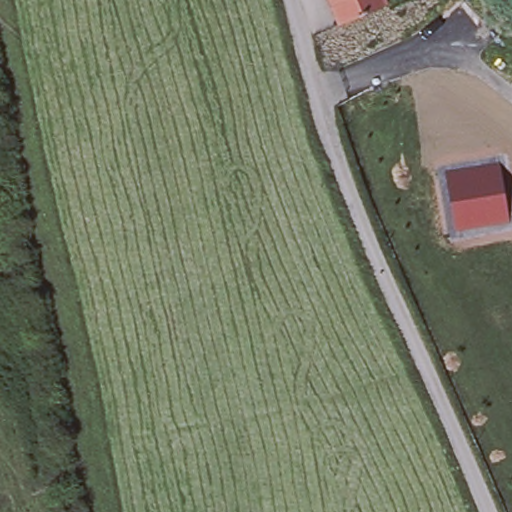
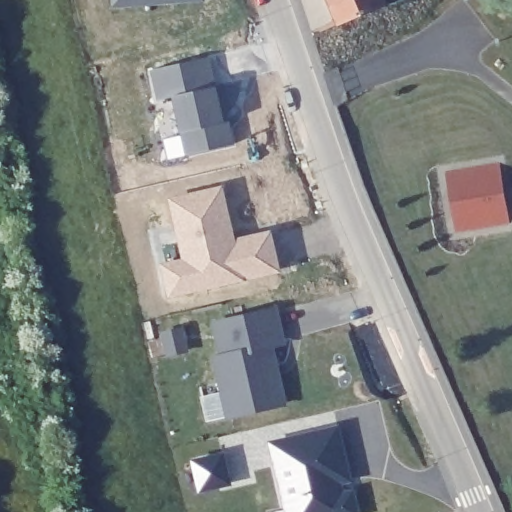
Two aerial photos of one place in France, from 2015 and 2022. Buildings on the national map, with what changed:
unchanged [(338,24),(328,0),(385,0),(386,3),(338,24)]
new [(207,60),(215,89),(220,87),(236,146),(191,159),(175,101),(161,104),(153,75),(207,60)]
unchanged [(457,230),(447,172),(500,163),(510,222),(457,230)]
new [(196,264),(180,202),(226,191),(240,244),(276,234),(286,271),(180,300),(172,271),(196,264)]
new [(285,310),(295,344),(282,347),(298,405),(243,420),(227,361),(235,359),(225,326),(285,310)]
new [(288,445),(353,427),(363,462),(367,478),(357,481),(361,493),(370,490),(377,512),(306,512),(288,445)]
new [(240,458),(247,487),(219,496),(210,467),(240,458)]

